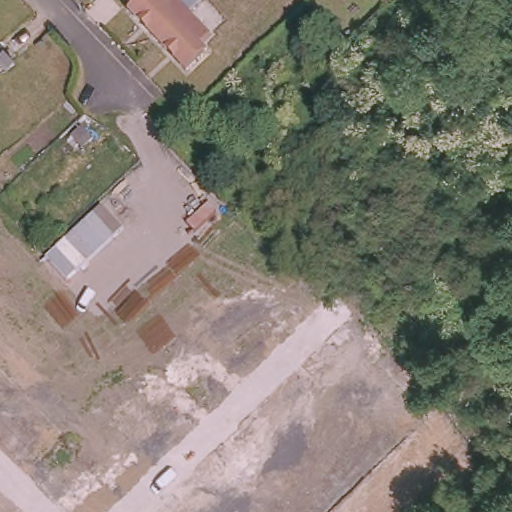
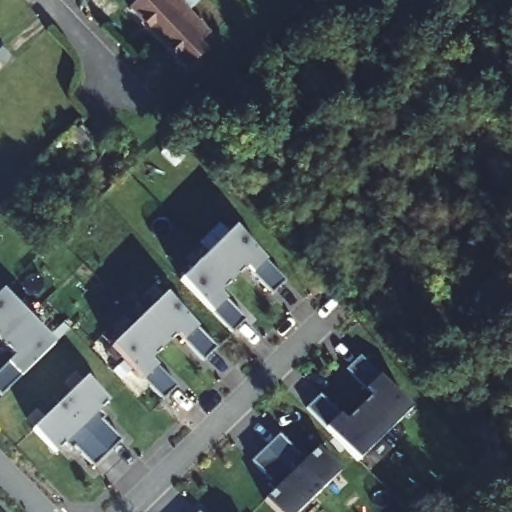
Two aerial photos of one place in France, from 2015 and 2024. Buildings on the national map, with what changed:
unchanged [(137,0),(167,0),(180,14),(152,41),(125,13),(137,0)]
unchanged [(180,14),(202,35),(190,44),(197,53),(180,70),(152,41),(180,14)]
unchanged [(0,47),(10,56),(0,66),(0,47)]
new [(235,228),(286,282),(272,295),(246,268),(233,281),(207,254),(235,228)]
new [(207,254),(233,281),(220,294),(246,320),(232,334),(180,280),(207,254)]
new [(28,319),(1,344),(0,342),(0,293),(2,292),(28,319)]
new [(165,294),(217,348),(203,362),(177,335),(164,348),(138,321),(165,294)]
new [(1,344),(28,319),(54,346),(1,397),(0,395),(0,371),(14,357),(1,344)]
new [(138,321),(164,348),(151,360),(177,387),(163,401),(111,347),(138,321)]
new [(360,356),(411,410),(385,436),(358,409),(371,397),(346,369),(360,356)]
new [(86,379),(108,402),(99,411),(105,418),(102,421),(121,441),(108,454),(60,404),(86,379)]
new [(320,394),(345,422),(358,409),(385,436),(357,462),(306,408),(320,394)]
new [(60,404),(108,454),(94,468),(75,447),(71,451),(65,444),(55,454),(32,431),(60,404)]
new [(279,434),(298,454),(302,451),(308,458),(318,448),(340,472),(314,498),(265,448),(279,434)]
new [(265,448),(314,498),(299,512),(276,512),(265,501),(274,491),(267,484),(271,482),(251,462),(265,448)]

